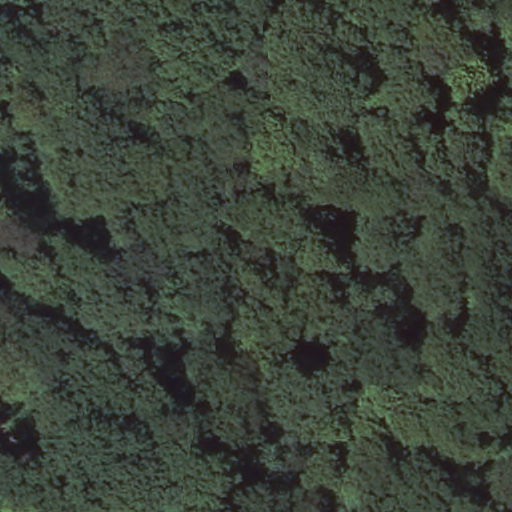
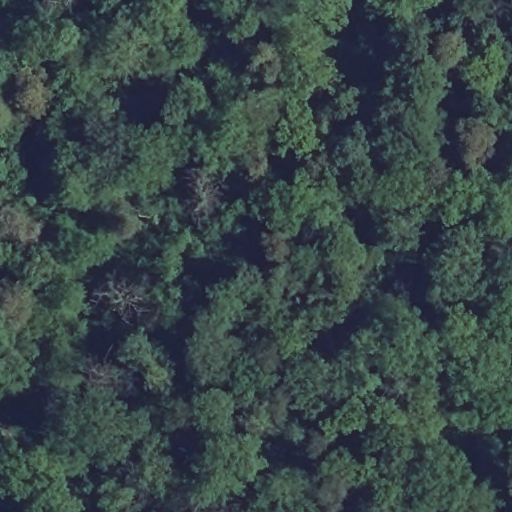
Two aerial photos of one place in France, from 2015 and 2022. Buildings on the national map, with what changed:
[]

